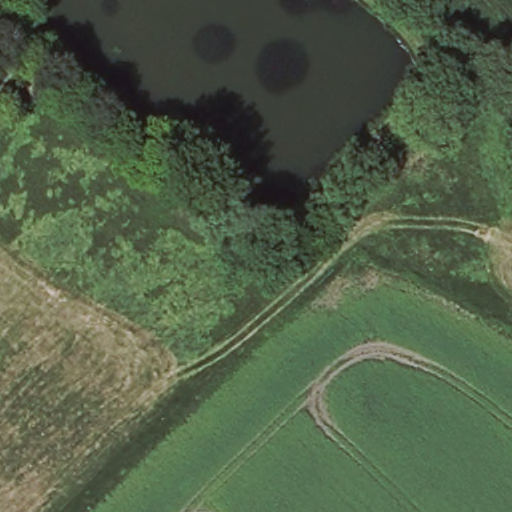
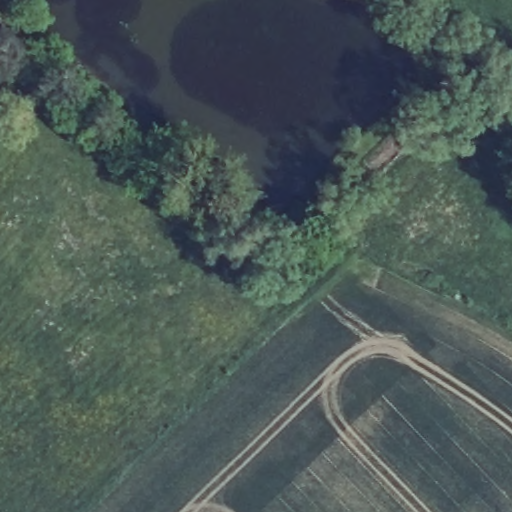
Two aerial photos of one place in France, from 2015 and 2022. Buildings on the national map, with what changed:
unchanged [(39,93),(0,132),(0,91),(15,73),(39,93)]

